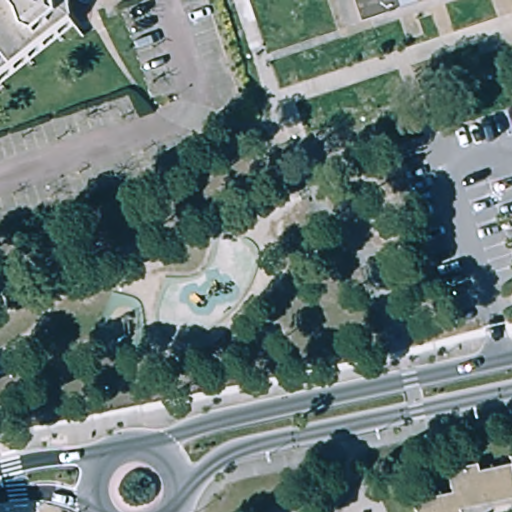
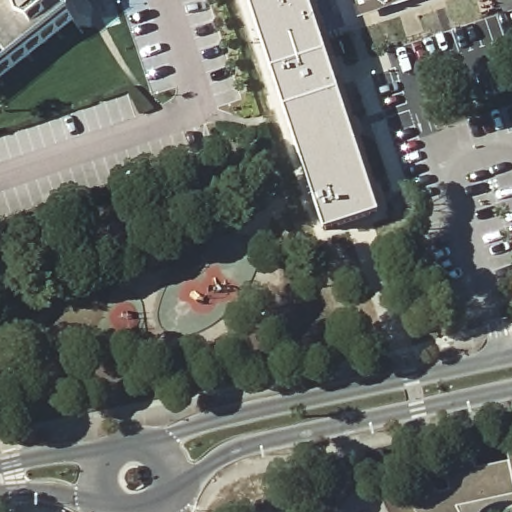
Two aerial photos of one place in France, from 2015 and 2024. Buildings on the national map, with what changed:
unchanged [(68,8),(67,9),(75,19),(0,79),(0,0),(67,0),(68,8)]
new [(323,232),(248,0),(306,0),(377,214),(323,232)]
unchanged [(356,0),(384,0),(358,9),(356,0)]
unchanged [(415,508),(436,497),(455,492),(450,473),(482,467),(483,474),(512,468),(512,503),(467,512),(418,512),(415,508)]

